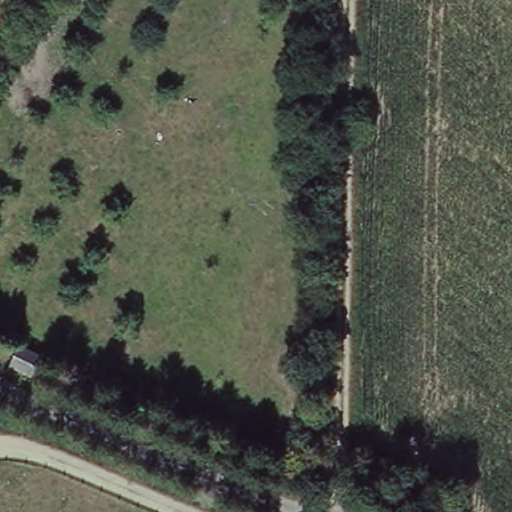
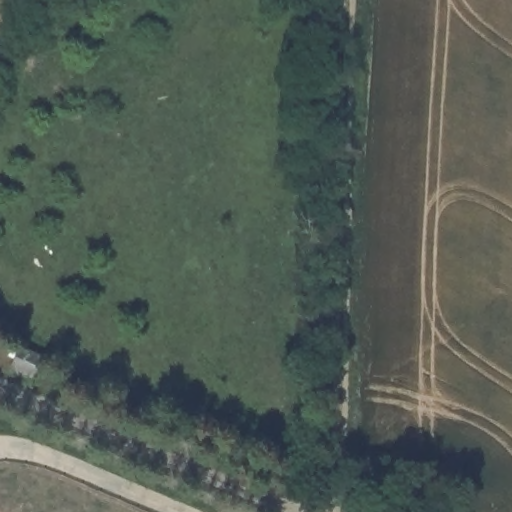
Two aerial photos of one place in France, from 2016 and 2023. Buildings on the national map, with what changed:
unchanged [(51,371),(44,368),(42,375),(20,366),(28,344),(51,353),(47,361),(54,365),(51,371)]

